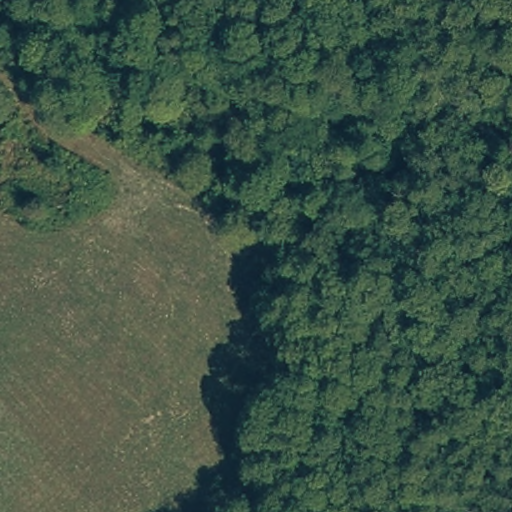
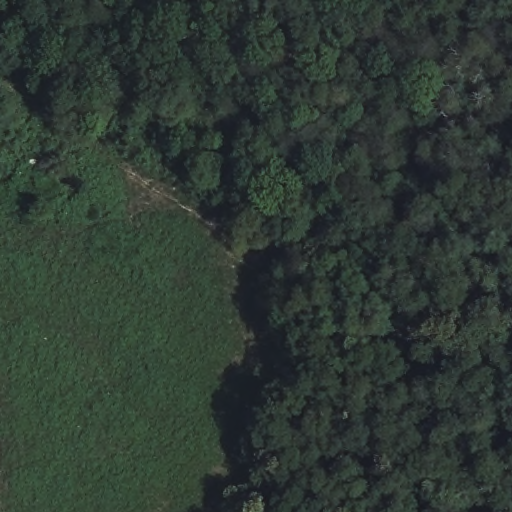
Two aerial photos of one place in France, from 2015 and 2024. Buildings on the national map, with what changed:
[]

